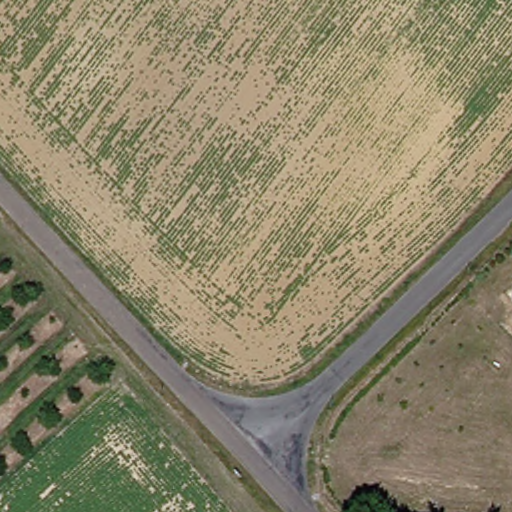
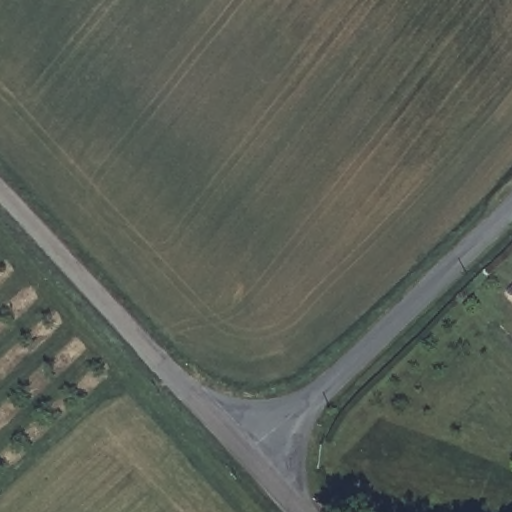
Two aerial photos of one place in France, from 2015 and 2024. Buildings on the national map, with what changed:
[]

